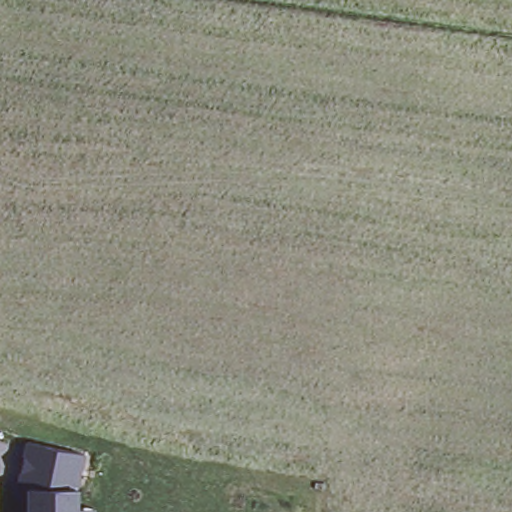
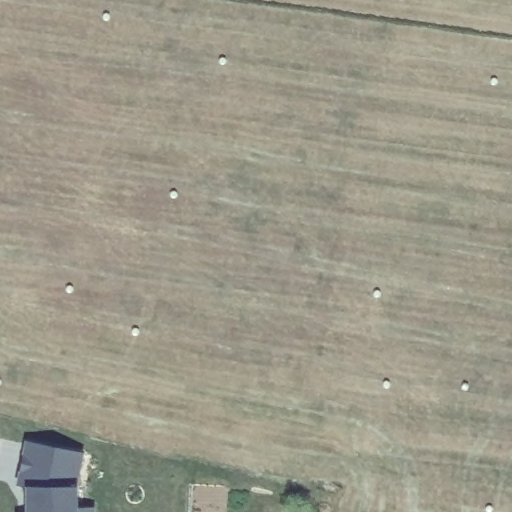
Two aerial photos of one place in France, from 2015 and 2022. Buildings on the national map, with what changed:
unchanged [(24,484),(16,482),(27,440),(85,451),(78,488),(79,507),(93,506),(93,512),(23,512),(24,484)]

